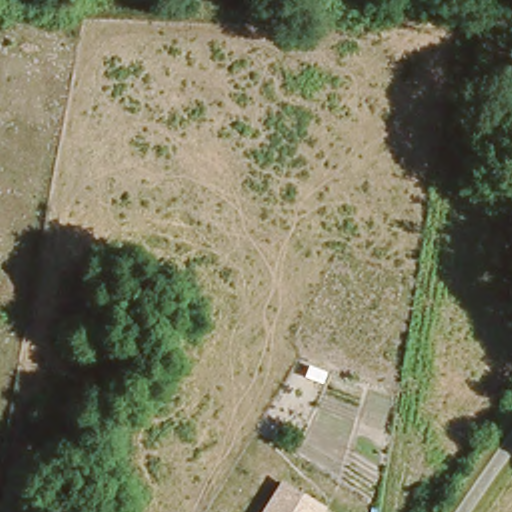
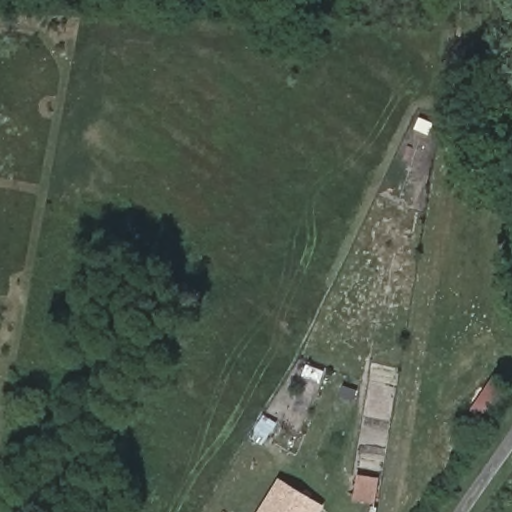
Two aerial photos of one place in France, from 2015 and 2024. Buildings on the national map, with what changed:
unchanged [(253,512),(274,477),(321,505),(317,512),(253,512)]

